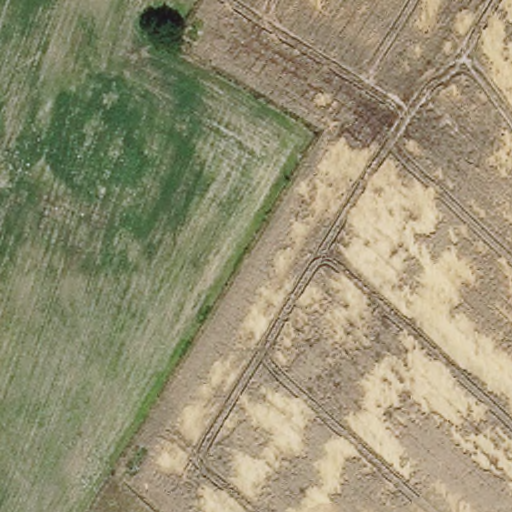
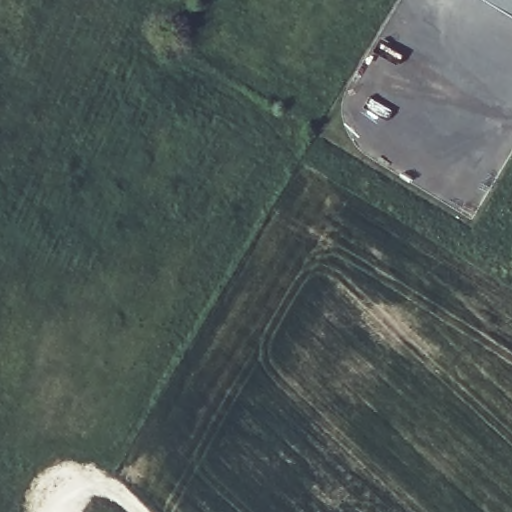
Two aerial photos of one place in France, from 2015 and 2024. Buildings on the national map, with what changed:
new [(475,0),(512,0),(512,23),(475,0)]

